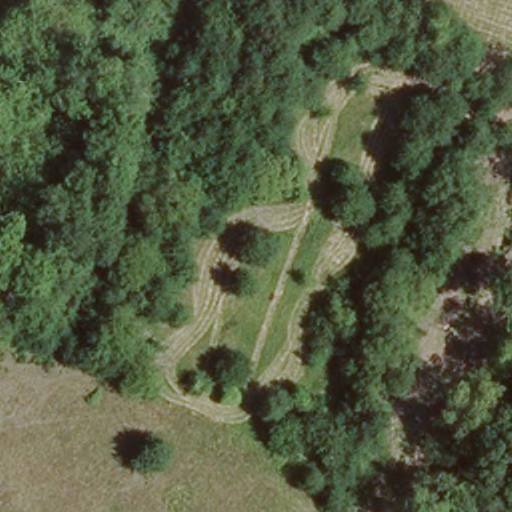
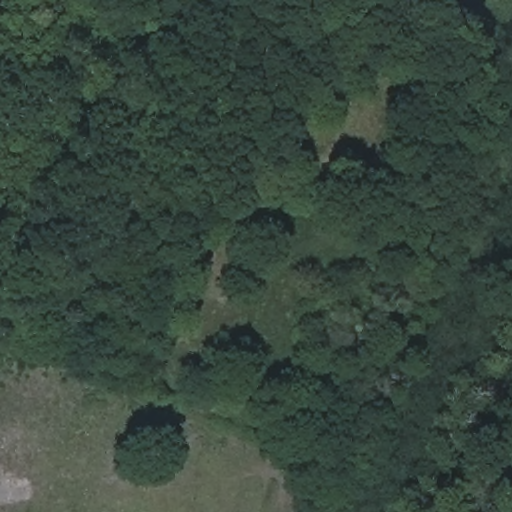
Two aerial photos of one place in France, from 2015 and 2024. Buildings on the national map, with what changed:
[]

